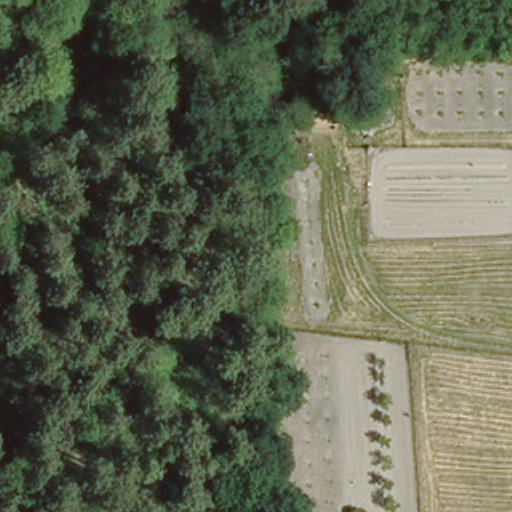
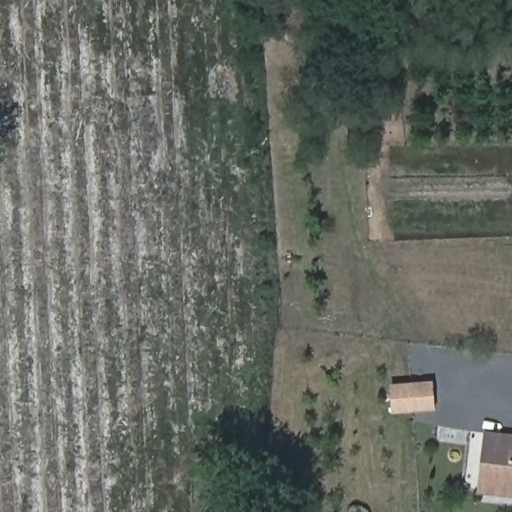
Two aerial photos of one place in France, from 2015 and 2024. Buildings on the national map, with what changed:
new [(393,414),(391,384),(434,381),(436,411),(393,414)]
new [(478,495),(484,431),(512,434),(512,499),(478,495)]

